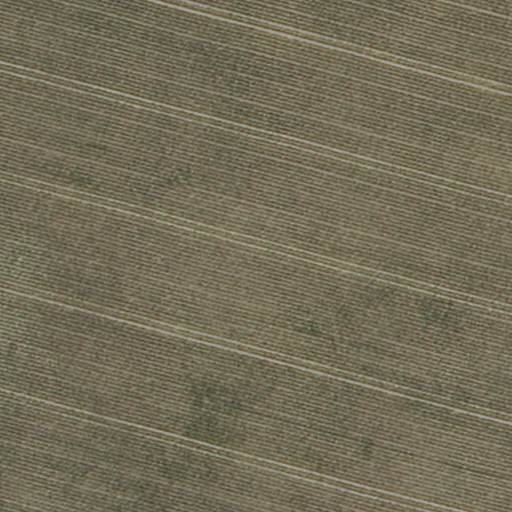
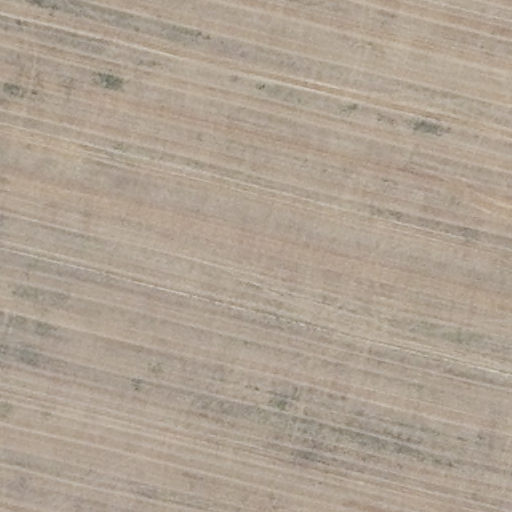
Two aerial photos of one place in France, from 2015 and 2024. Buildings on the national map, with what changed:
[]

